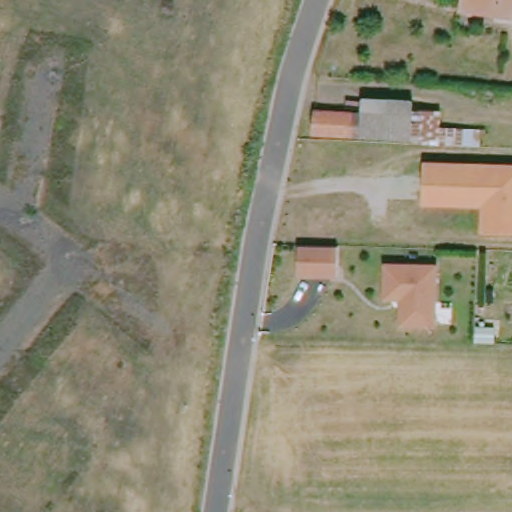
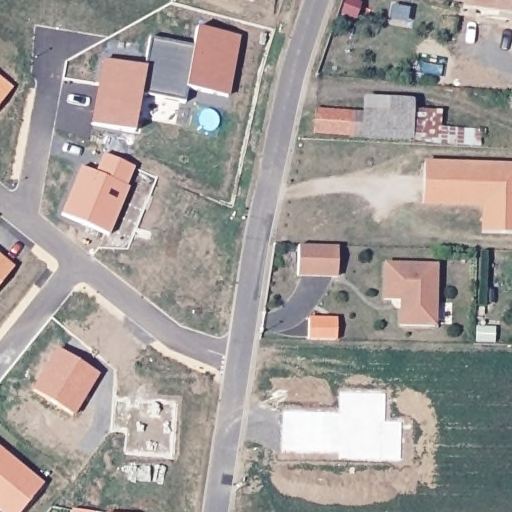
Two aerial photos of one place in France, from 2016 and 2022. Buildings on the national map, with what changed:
unchanged [(457,0),(512,0),(512,16),(456,9),(457,0)]
new [(104,59),(145,66),(151,36),(194,44),(198,25),(239,32),(229,91),(188,85),(186,100),(141,92),(134,130),(93,123),(104,59)]
new [(0,74),(14,85),(0,104),(0,74)]
unchanged [(308,112),(356,112),(356,97),(409,99),(408,110),(437,112),(438,126),(475,127),(476,144),(434,140),(404,139),(353,136),(309,140),(308,112)]
new [(61,215),(83,164),(98,170),(104,152),(136,166),(128,186),(131,186),(109,234),(61,215)]
unchanged [(489,230),(489,204),(429,202),(428,162),(512,164),(512,231),(489,230)]
unchanged [(340,249),(339,280),(299,277),(300,248),(340,249)]
new [(0,286),(0,256),(14,268),(0,286)]
unchanged [(402,327),(402,312),(402,302),(386,301),(387,266),(438,267),(437,312),(436,328),(402,327)]
unchanged [(477,342),(477,327),(495,327),(495,342),(477,342)]
new [(76,416),(34,389),(61,345),(102,372),(76,416)]
new [(341,453),(283,453),(283,410),(340,410),(341,391),(387,391),(388,421),(404,422),(403,461),(340,461),(341,453)]
new [(0,511),(0,446),(46,482),(22,512),(1,512),(0,511)]

